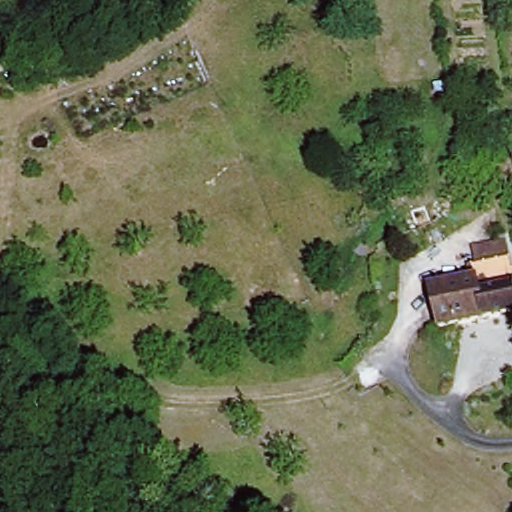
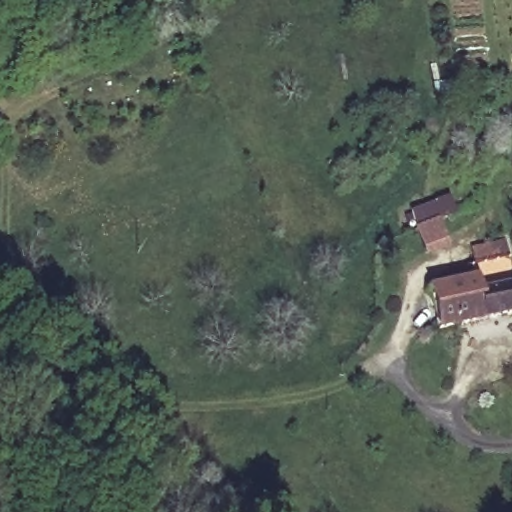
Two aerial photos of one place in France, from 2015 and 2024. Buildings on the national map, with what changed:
new [(410,212),(448,196),(455,214),(438,221),(450,248),(425,258),(414,231),(417,230),(410,212)]
unchanged [(477,249),(510,241),(512,248),(512,271),(479,279),(477,267),(482,266),(477,249)]
unchanged [(512,287),(512,313),(445,329),(435,290),(479,279),(483,295),(512,287)]

